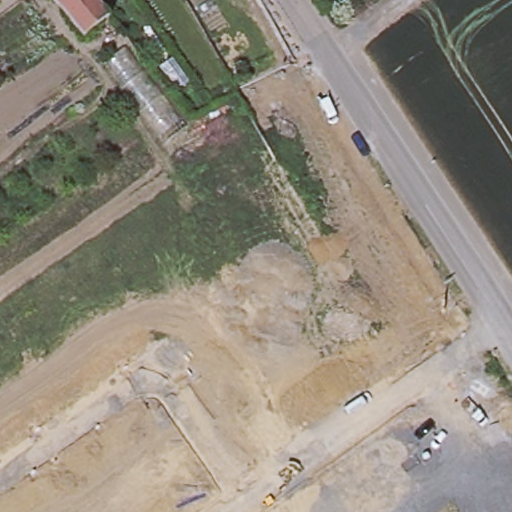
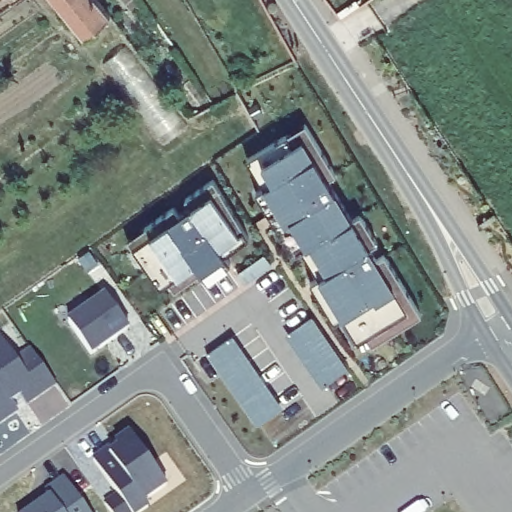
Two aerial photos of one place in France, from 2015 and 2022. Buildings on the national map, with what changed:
unchanged [(115,11),(115,12),(88,33),(62,0),(106,0),(115,11)]
new [(342,318),(334,323),(310,284),(318,279),(301,251),(293,256),(255,195),(264,190),(246,161),(255,156),(287,137),(293,147),(311,136),(336,176),(327,181),(351,221),(360,216),(377,244),(368,249),(375,261),(384,256),(415,307),(420,316),(395,331),(371,346),(366,338),(357,343),(342,318)]
new [(149,272),(132,249),(127,241),(144,229),(173,208),(179,216),(190,208),(185,200),(213,180),(243,231),(248,239),(224,256),(230,264),(206,280),(200,272),(174,291),(168,283),(160,288),(149,272)]
new [(66,321),(105,295),(130,330),(91,356),(66,321)]
new [(310,319),(310,318),(311,317),(348,370),(346,370),(324,385),(289,334),(310,319)]
new [(16,360),(33,349),(57,387),(26,406),(20,396),(12,402),(20,413),(0,426),(0,334),(16,360)]
new [(207,354),(208,354),(230,339),(281,412),(259,428),(258,429),(206,354),(207,354)]
new [(130,435),(167,486),(145,502),(149,507),(142,512),(128,512),(93,461),(107,451),(115,445),(130,435)]

